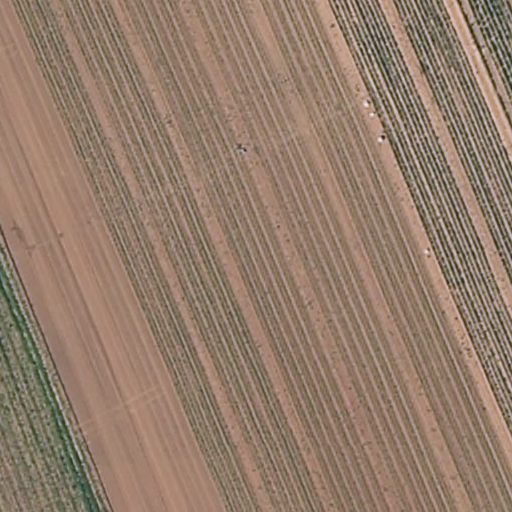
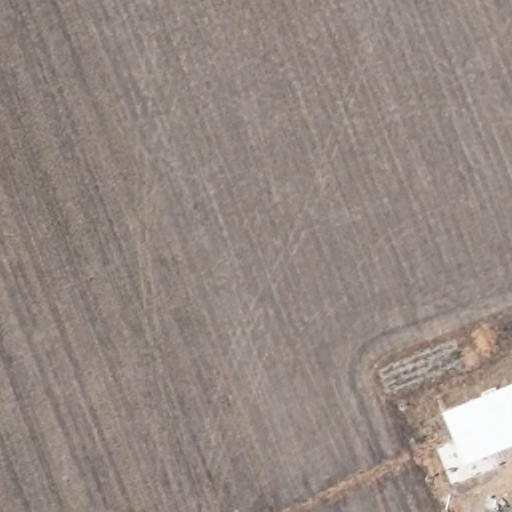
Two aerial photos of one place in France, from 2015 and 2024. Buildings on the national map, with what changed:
new [(441,413),(512,384),(512,445),(462,465),(441,413)]

